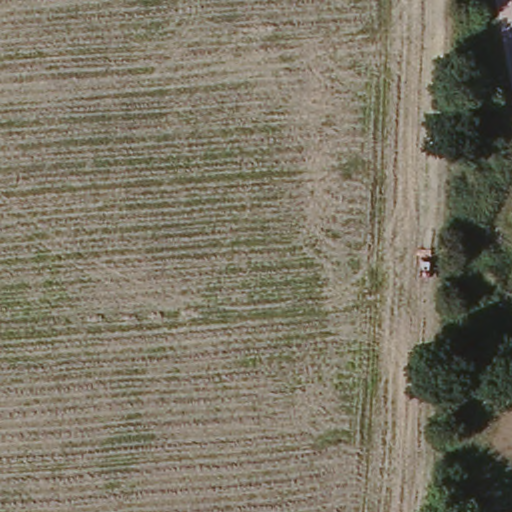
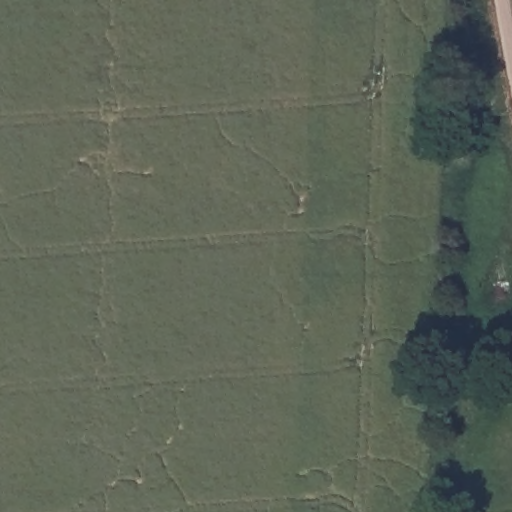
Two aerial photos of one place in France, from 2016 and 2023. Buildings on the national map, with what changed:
[]

